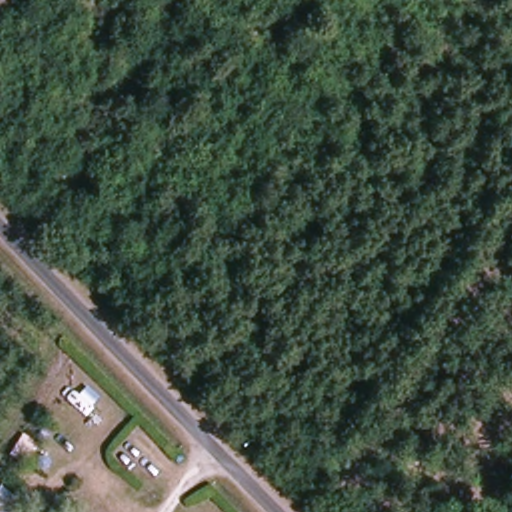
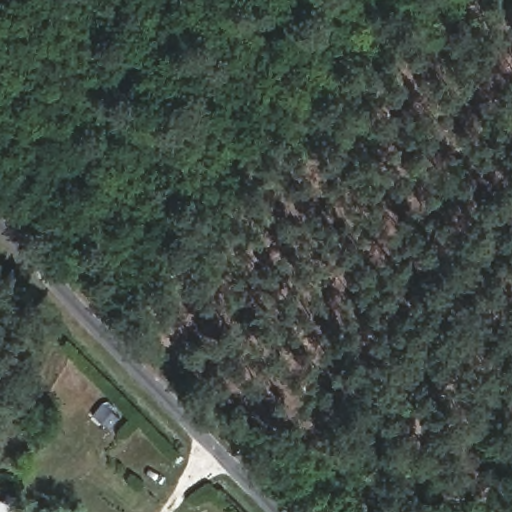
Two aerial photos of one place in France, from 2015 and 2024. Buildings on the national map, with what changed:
[]

